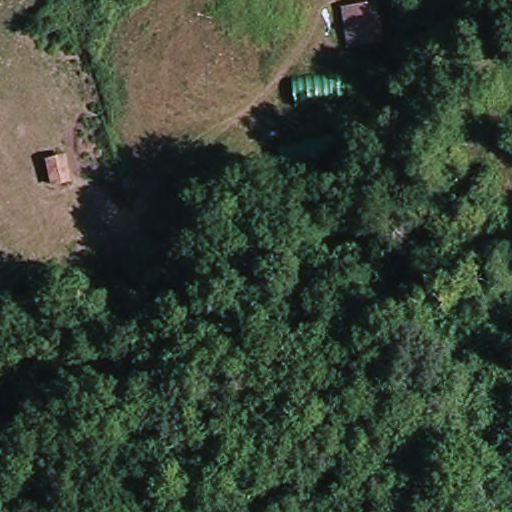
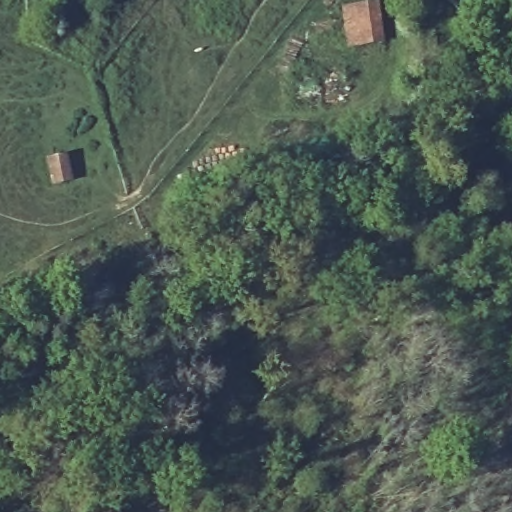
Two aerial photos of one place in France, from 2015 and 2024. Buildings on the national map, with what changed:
unchanged [(378,1),(384,42),(347,47),(341,7),(378,1)]
unchanged [(351,72),(354,100),(294,107),(292,80),(351,72)]

